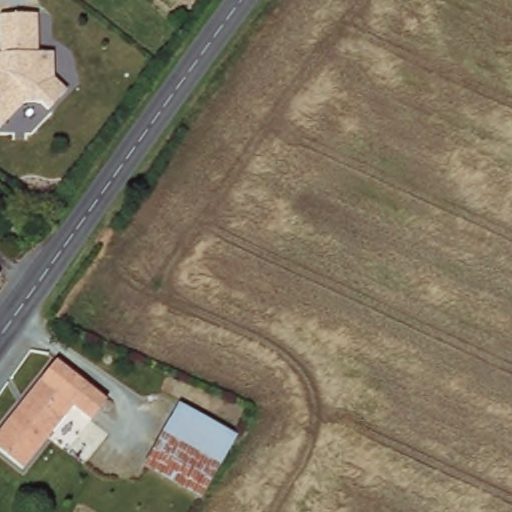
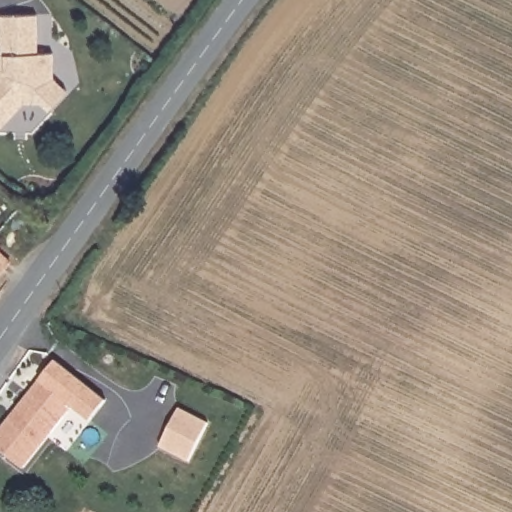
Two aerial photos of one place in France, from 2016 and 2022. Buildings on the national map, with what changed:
unchanged [(39,15),(40,53),(56,53),(57,76),(69,88),(53,105),(25,103),(1,128),(0,126),(0,53),(2,53),(0,15),(39,15)]
unchanged [(39,381),(56,358),(110,401),(91,422),(72,407),(25,469),(0,450),(0,430),(39,381)]
unchanged [(199,499),(140,468),(177,403),(235,435),(199,499)]

